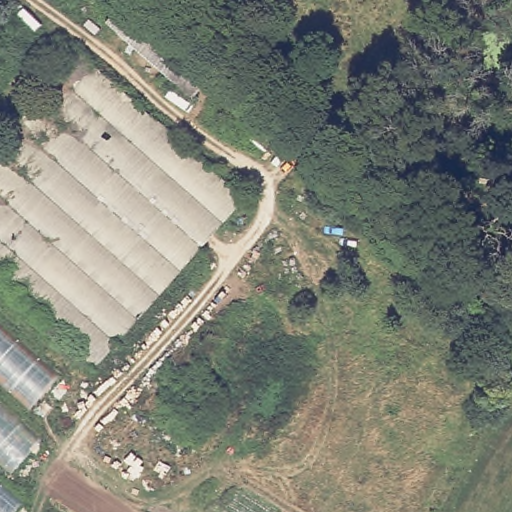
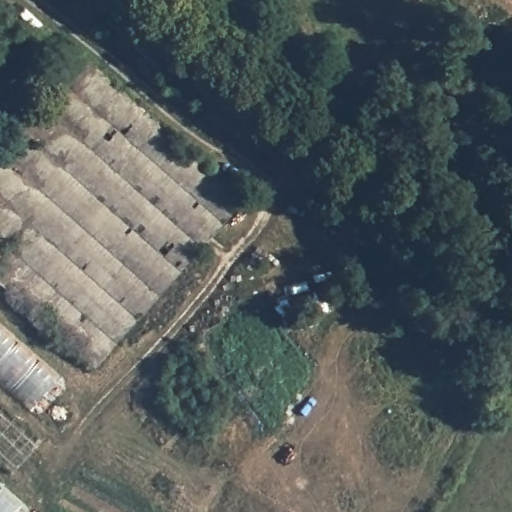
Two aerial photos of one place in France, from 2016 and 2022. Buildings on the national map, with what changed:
unchanged [(106,23),(126,0),(132,0),(213,72),(191,96),(106,23)]
unchanged [(95,370),(0,291),(0,143),(80,55),(243,199),(95,370)]
unchanged [(44,434),(8,479),(26,504),(18,512),(0,512),(0,322),(62,379),(29,417),(44,434)]

